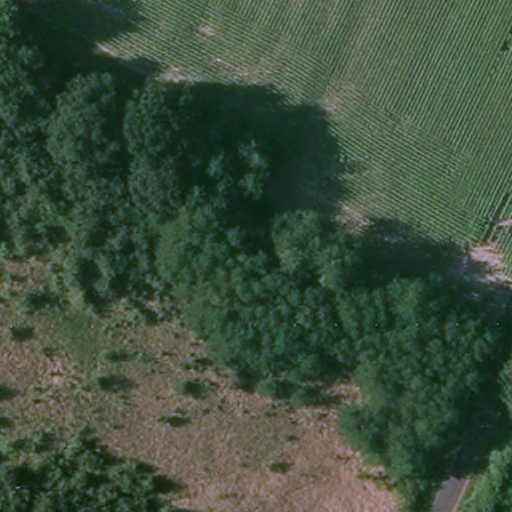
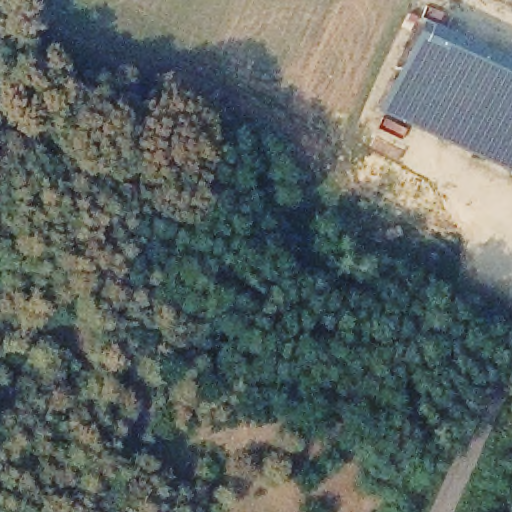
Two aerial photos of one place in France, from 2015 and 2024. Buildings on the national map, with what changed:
new [(418,18),(512,61),(512,173),(376,110),(418,18)]

